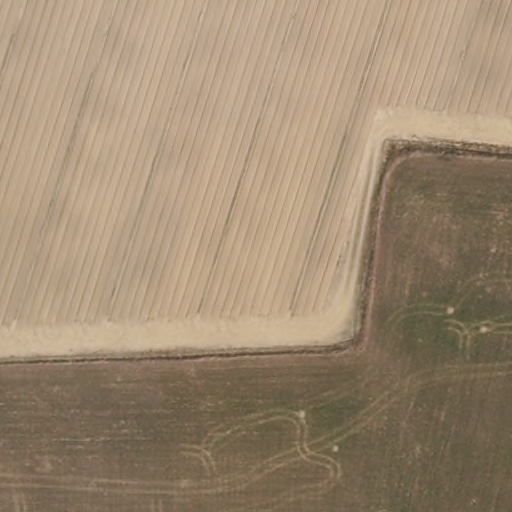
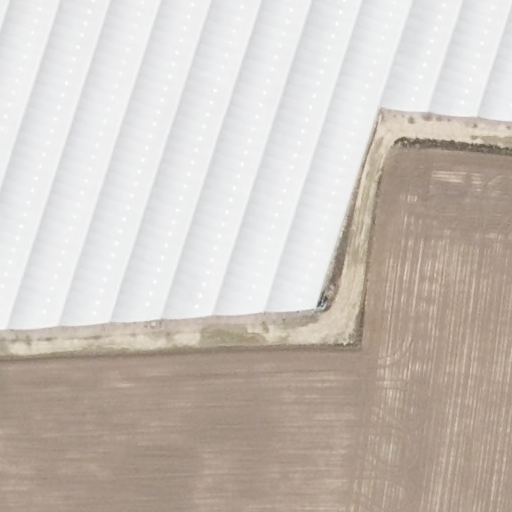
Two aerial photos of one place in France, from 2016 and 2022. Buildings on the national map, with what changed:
new [(380,102),(317,304),(0,325),(0,0),(512,0),(512,115),(380,102)]

